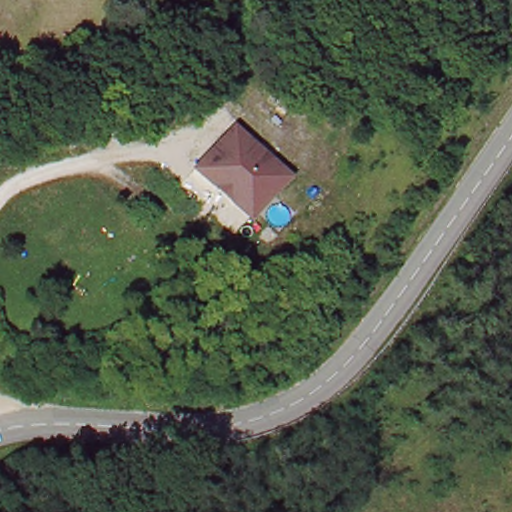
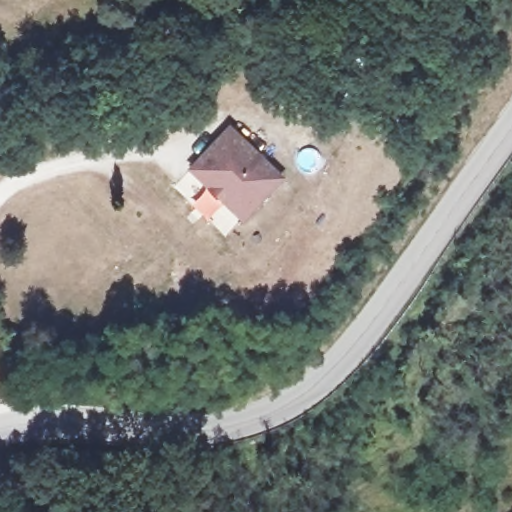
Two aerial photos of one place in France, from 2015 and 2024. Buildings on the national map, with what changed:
unchanged [(227,125),(284,178),(245,221),(190,167),(227,125)]

